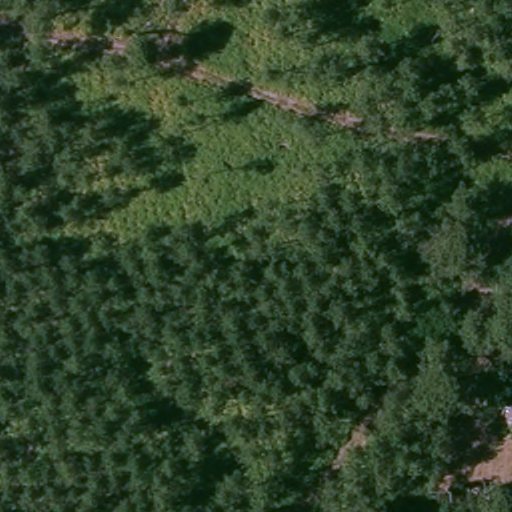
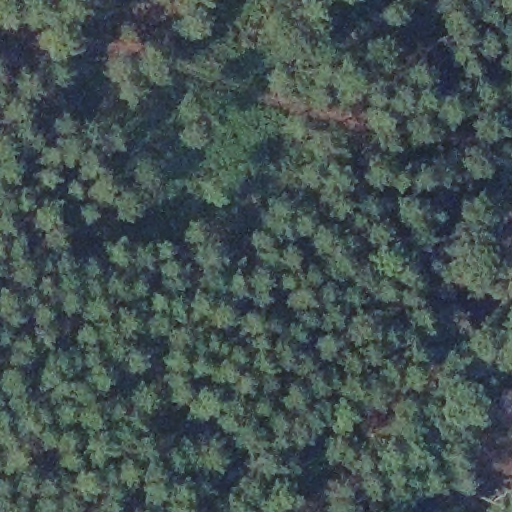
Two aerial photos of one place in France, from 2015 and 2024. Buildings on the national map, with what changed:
[]

